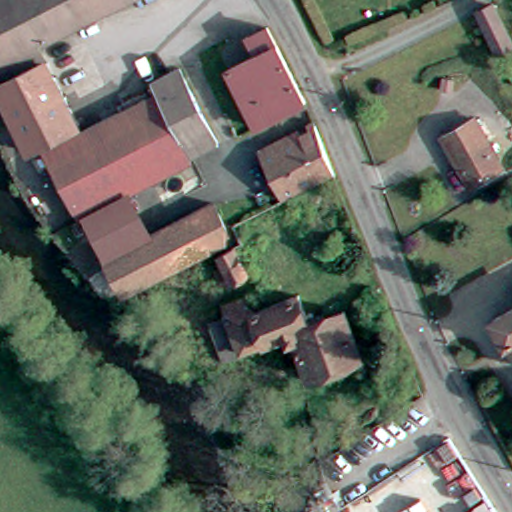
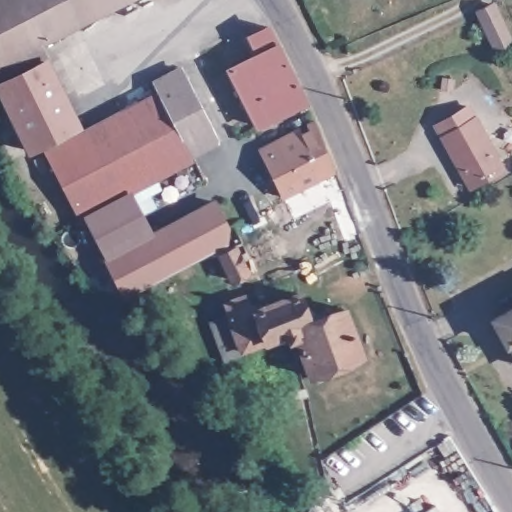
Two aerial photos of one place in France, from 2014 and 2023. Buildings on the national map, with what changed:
unchanged [(47,64),(0,85),(0,0),(131,0),(39,47),(47,64)]
unchanged [(494,3),(512,39),(512,44),(500,50),(480,10),(494,3)]
unchanged [(223,62),(255,49),(249,36),(268,27),(304,102),(256,125),(223,62)]
unchanged [(47,64),(78,126),(31,150),(0,89),(0,85),(47,64)]
unchanged [(155,92),(156,92),(152,83),(178,70),(215,145),(187,160),(155,92)]
unchanged [(189,164),(181,169),(131,195),(114,202),(82,220),(79,221),(42,152),(128,106),(155,92),(187,160),(189,164)]
unchanged [(466,189),(439,140),(471,122),(498,172),(466,189)]
unchanged [(262,155),(315,128),(331,170),(281,195),(262,155)]
unchanged [(102,259),(82,220),(114,202),(131,195),(149,235),(102,259)]
unchanged [(149,235),(212,201),(225,225),(222,241),(197,255),(198,258),(187,264),(185,261),(139,286),(121,295),(102,259),(149,235)]
unchanged [(232,246),(233,245),(244,273),(229,280),(228,280),(219,283),(212,267),(221,263),(216,254),(232,246)]
unchanged [(502,358),(497,348),(495,349),(482,325),(499,316),(489,297),(512,286),(512,363),(508,355),(502,358)]
unchanged [(264,295),(267,302),(304,288),(312,308),(319,306),(322,314),(350,303),(366,352),(328,366),(331,372),(322,375),(319,370),(315,371),(300,333),(294,335),(291,327),(270,335),(272,341),(229,356),(215,317),(233,310),(229,297),(250,289),(255,300),(264,295)]

